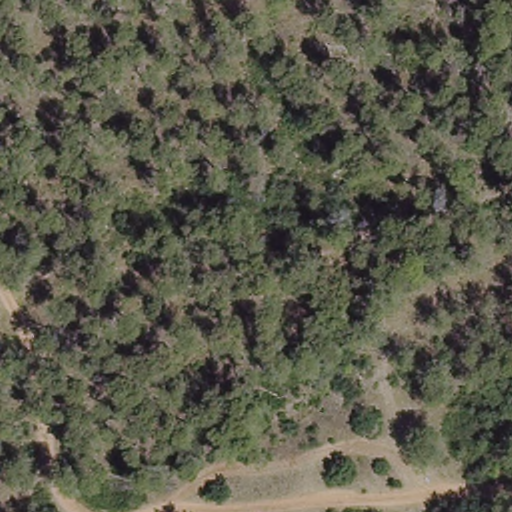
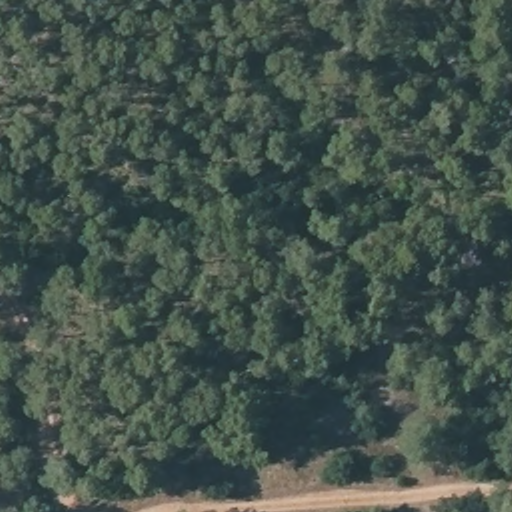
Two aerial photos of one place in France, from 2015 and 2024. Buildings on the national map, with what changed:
[]

